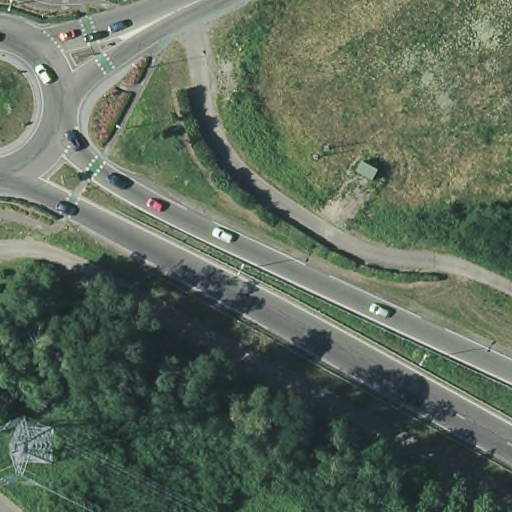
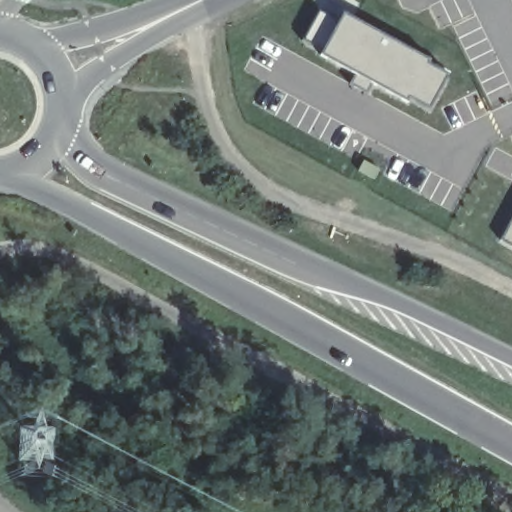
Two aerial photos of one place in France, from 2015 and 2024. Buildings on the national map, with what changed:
new [(446,79),(427,114),(301,46),(318,9),(446,79)]
new [(512,223),(512,247),(502,241),(512,223)]

